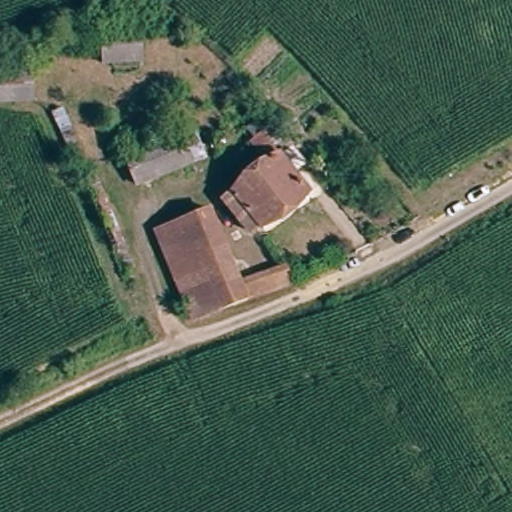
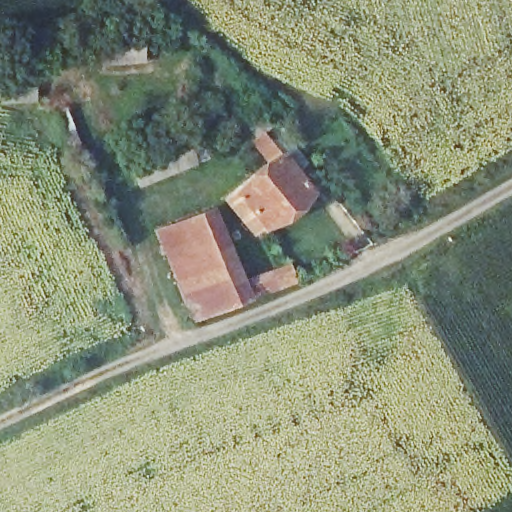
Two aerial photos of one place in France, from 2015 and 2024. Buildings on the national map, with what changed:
unchanged [(102,27),(142,24),(144,61),(101,62),(102,27)]
unchanged [(34,99),(0,101),(0,63),(35,63),(34,99)]
unchanged [(117,243),(93,188),(84,190),(54,112),(67,108),(86,159),(92,157),(124,240),(117,243)]
unchanged [(247,234),(239,222),(235,225),(217,194),(276,157),(261,135),(271,128),(298,167),(287,174),(304,198),(247,234)]
unchanged [(137,180),(126,152),(151,144),(181,133),(191,160),(168,169),(137,180)]
unchanged [(229,253),(175,274),(156,225),(199,207),(209,203),(229,253)]
unchanged [(175,274),(229,253),(239,280),(281,263),(290,284),(227,309),(225,304),(192,317),(175,274)]

